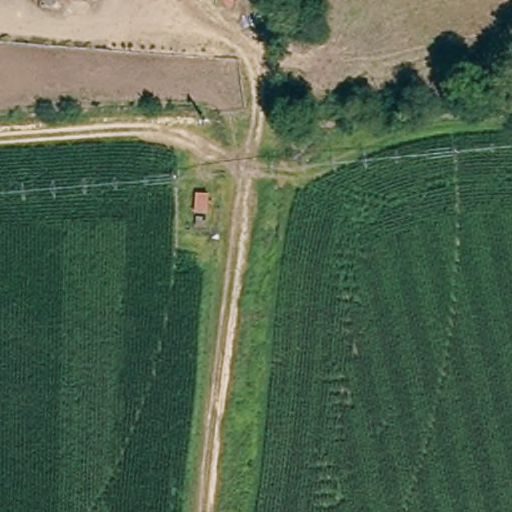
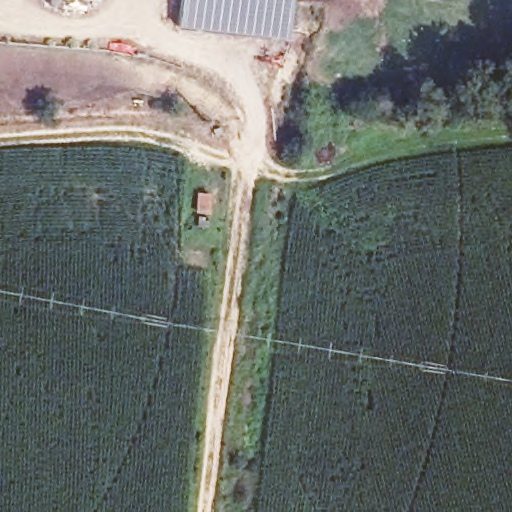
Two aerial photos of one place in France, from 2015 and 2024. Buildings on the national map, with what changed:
unchanged [(69,0),(102,0),(102,4),(69,0)]
new [(181,0),(290,0),(285,41),(178,28),(181,0)]

